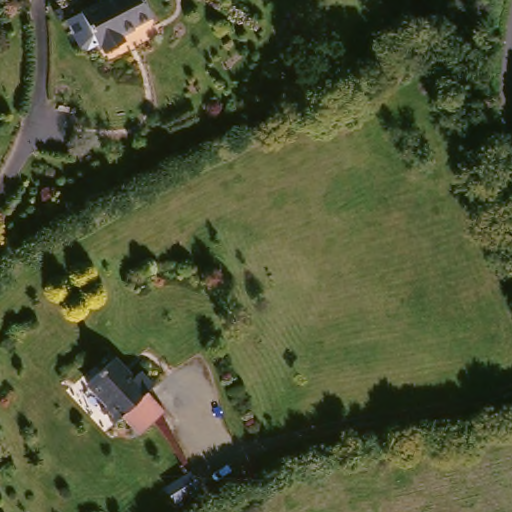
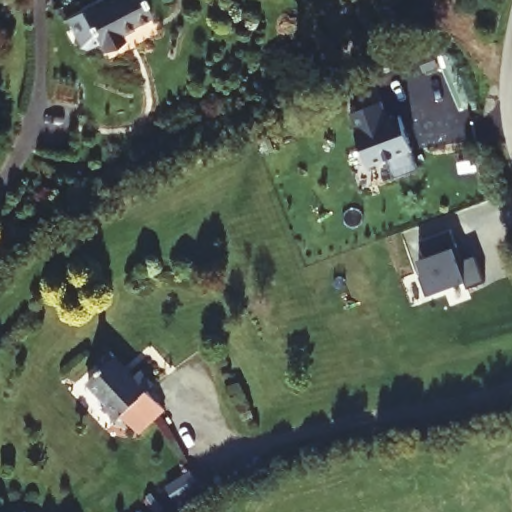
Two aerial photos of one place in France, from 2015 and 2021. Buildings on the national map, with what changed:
unchanged [(94,0),(147,0),(154,13),(125,27),(129,35),(111,44),(106,36),(102,38),(83,6),(94,0)]
new [(378,113),(385,132),(397,127),(410,161),(409,162),(416,182),(391,191),(383,171),(365,178),(352,144),(353,143),(346,125),(378,113)]
new [(447,239),(454,256),(450,257),(455,271),(472,264),(483,291),(465,298),(462,291),(424,306),(416,286),(421,284),(415,270),(421,268),(415,252),(447,239)]
unchanged [(91,386),(119,363),(137,384),(145,377),(158,393),(122,423),(91,386)]

